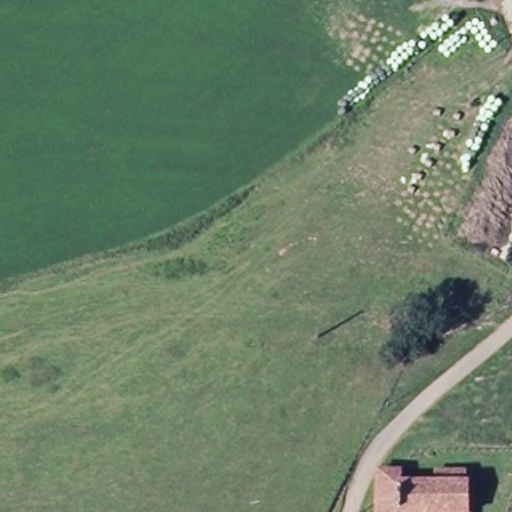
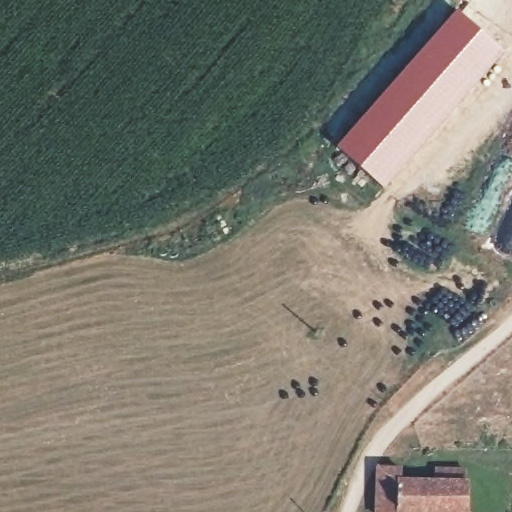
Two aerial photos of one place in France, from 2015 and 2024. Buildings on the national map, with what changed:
new [(505,51),(383,188),(335,148),(457,10),(505,51)]
unchanged [(432,468),(466,467),(469,512),(379,512),(379,467),(404,466),(405,478),(432,479),(432,468)]

